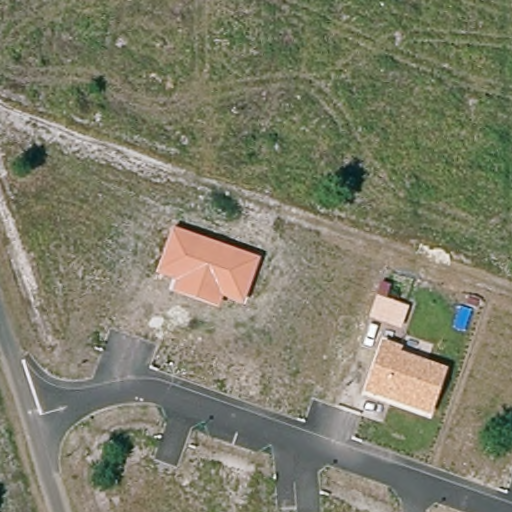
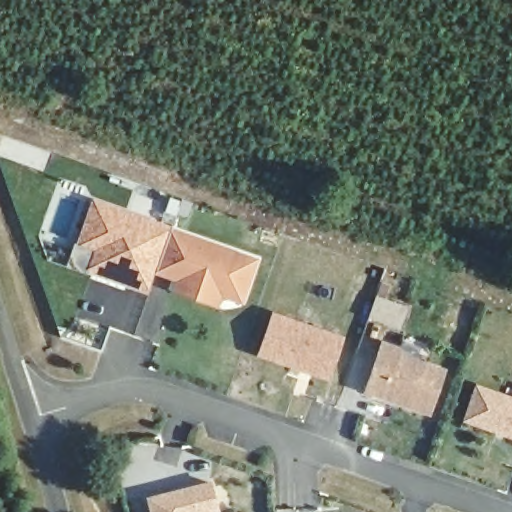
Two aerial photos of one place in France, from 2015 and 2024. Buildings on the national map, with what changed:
new [(149,291),(84,270),(90,251),(76,247),(93,199),(170,227),(154,275),(149,291)]
unchanged [(170,227),(259,257),(245,306),(220,298),(218,307),(170,291),(173,282),(154,275),(170,227)]
unchanged [(378,292),(407,302),(400,322),(371,312),(378,292)]
new [(276,311),(344,333),(331,373),(263,350),(276,311)]
unchanged [(382,339),(402,346),(400,352),(446,368),(430,417),(363,392),(382,339)]
new [(480,381),(512,392),(512,431),(468,416),(480,381)]
new [(220,507),(202,512),(156,512),(151,494),(213,478),(220,507)]

